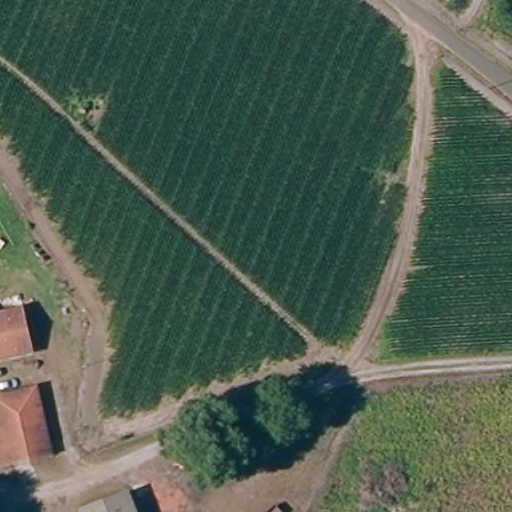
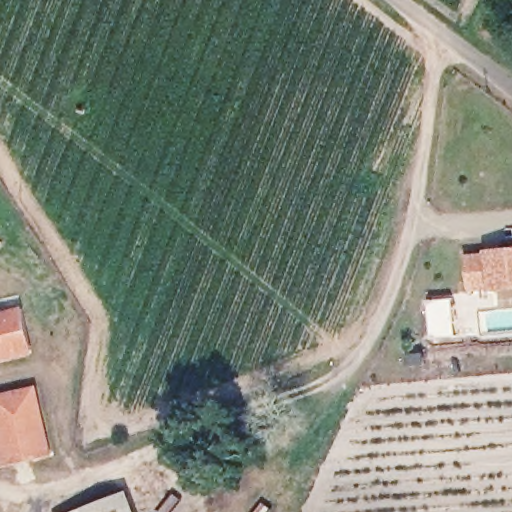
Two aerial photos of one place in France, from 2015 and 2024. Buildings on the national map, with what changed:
new [(512,254),(512,291),(489,292),(489,289),(469,291),(466,261),(486,259),(486,256),(512,254)]
unchanged [(4,316),(20,313),(30,357),(14,361),(0,364),(0,317),(4,316)]
unchanged [(0,467),(0,400),(40,391),(54,455),(0,467)]
unchanged [(130,490),(138,512),(85,512),(83,508),(130,490)]

